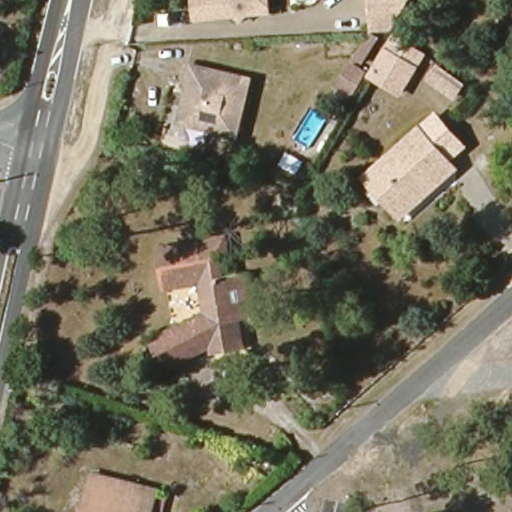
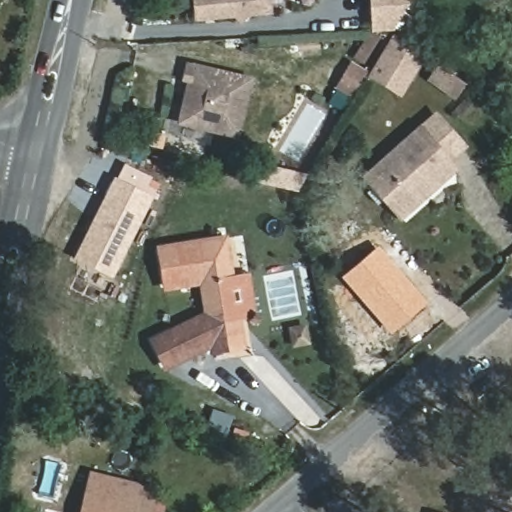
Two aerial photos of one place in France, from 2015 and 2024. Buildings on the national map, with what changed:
unchanged [(212,0),(214,14),(214,20),(195,21),(191,0),(212,0)]
unchanged [(246,11),(239,18),(232,12),(214,14),(212,0),(267,0),(268,9),(246,11)]
unchanged [(379,29),(379,0),(417,0),(399,29),(379,29)]
unchanged [(407,90),(379,74),(402,36),(418,46),(410,59),(422,66),(407,90)]
unchanged [(239,136),(173,124),(187,60),(254,75),(239,136)]
unchanged [(359,94),(344,85),(359,61),(374,70),(359,94)]
unchanged [(464,84),(452,98),(428,79),(437,64),(464,84)]
unchanged [(360,180),(437,115),(468,150),(448,161),(458,172),(398,223),(360,180)]
new [(113,279),(72,259),(113,176),(119,176),(125,165),(154,178),(145,191),(154,196),(113,279)]
unchanged [(160,252),(224,245),(227,283),(245,282),(249,325),(232,326),(234,353),(208,357),(202,352),(162,373),(149,347),(180,330),(175,322),(189,312),(188,286),(162,288),(160,252)]
new [(391,335),(341,277),(378,245),(427,303),(391,335)]
unchanged [(92,456),(124,461),(116,512),(93,512),(82,509),(92,456)]
unchanged [(124,461),(140,465),(138,476),(153,480),(146,512),(116,512),(124,461)]
unchanged [(82,509),(93,512),(81,512),(82,509)]

